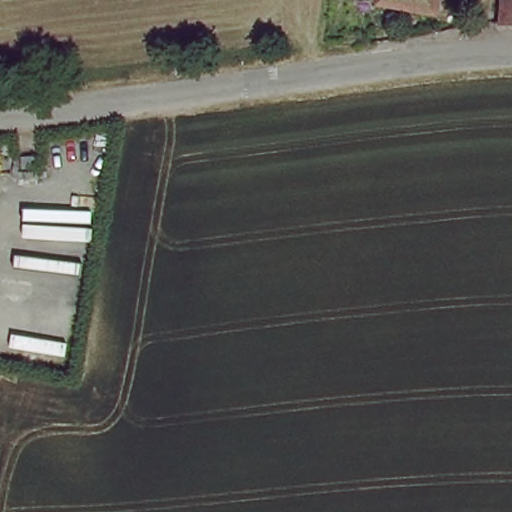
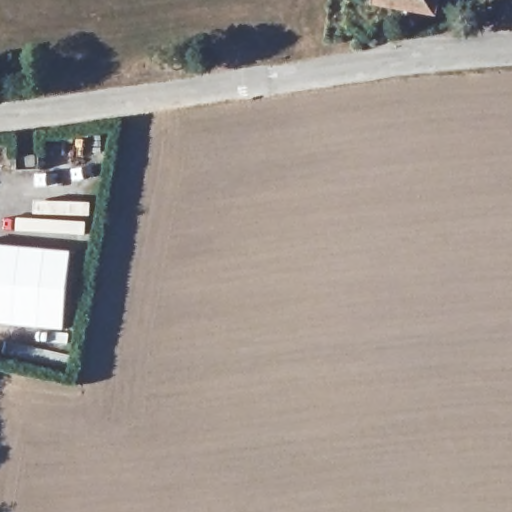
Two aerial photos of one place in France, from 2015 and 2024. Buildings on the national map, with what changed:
unchanged [(382,0),(431,0),(429,14),(382,1),(382,0)]
unchanged [(492,24),(497,0),(512,0),(512,26),(500,24),(492,24)]
new [(72,250),(64,329),(0,324),(0,243),(72,250)]
new [(3,339),(5,326),(74,337),(72,350),(3,339)]

